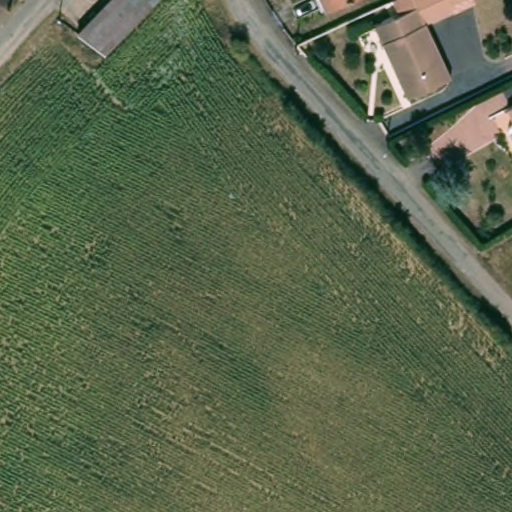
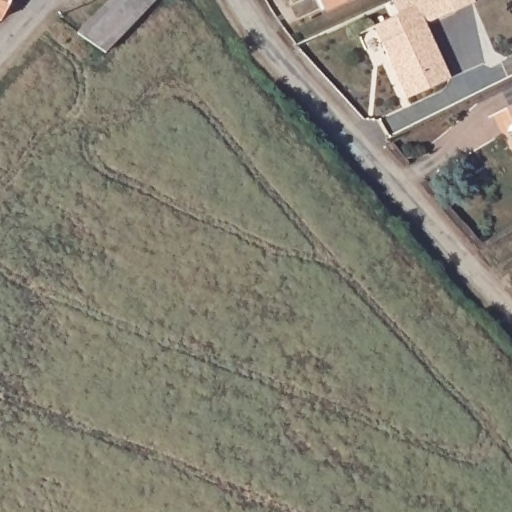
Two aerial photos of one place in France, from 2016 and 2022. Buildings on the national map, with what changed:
unchanged [(12,0),(0,23),(0,0),(12,0)]
unchanged [(24,0),(21,4),(12,0),(24,0)]
unchanged [(113,0),(159,0),(98,49),(76,31),(113,0)]
unchanged [(323,0),(344,0),(327,8),(323,0)]
unchanged [(448,80),(407,99),(372,29),(395,18),(388,3),(394,0),(457,0),(446,5),(449,11),(420,24),(448,80)]
unchanged [(512,107),(512,119),(507,110),(512,107)]

